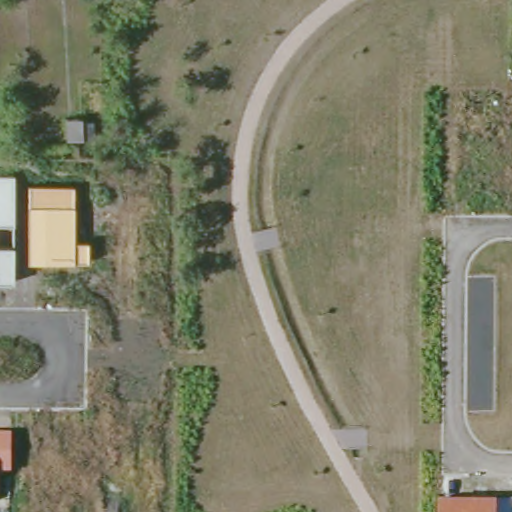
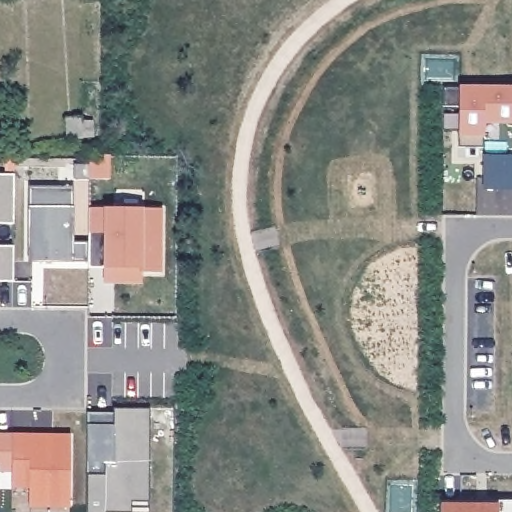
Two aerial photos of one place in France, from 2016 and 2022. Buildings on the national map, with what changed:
new [(459,87),(512,87),(512,124),(482,124),(482,137),(480,147),(458,147),(458,137),(459,87)]
unchanged [(68,120),(82,119),(82,139),(68,139),(68,120)]
new [(512,155),(512,191),(483,191),(483,155),(512,155)]
unchanged [(14,175),(14,281),(0,281),(0,175),(14,175)]
unchanged [(29,187),(73,187),(74,207),(74,242),(88,242),(88,261),(74,261),(74,262),(27,263),(29,187)]
new [(89,209),(163,210),(162,272),(141,272),(141,285),(104,285),(104,270),(87,268),(88,261),(88,242),(89,209)]
new [(149,500),(130,501),(130,512),(105,512),(104,512),(85,512),(87,475),(105,476),(106,462),(85,460),(85,425),(114,426),(114,410),(148,409),(149,500)]
unchanged [(12,434),(12,473),(0,473),(0,434),(12,434)]
new [(71,435),(70,508),(29,509),(29,488),(12,488),(12,473),(12,434),(71,435)]
unchanged [(442,503),(443,500),(512,501),(512,512),(441,512),(442,503)]

